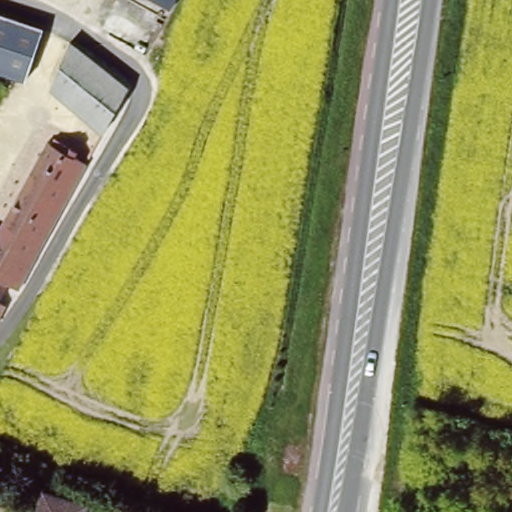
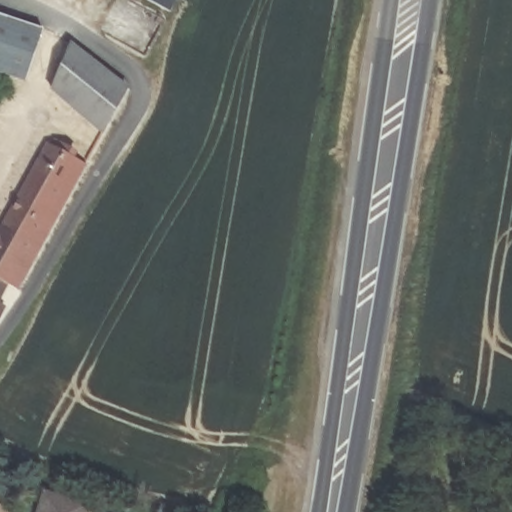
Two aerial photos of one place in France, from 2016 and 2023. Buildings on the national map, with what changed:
unchanged [(149,0),(178,0),(171,13),(149,0)]
unchanged [(30,81),(0,70),(0,12),(48,31),(30,81)]
unchanged [(164,18),(172,22),(168,28),(160,24),(164,18)]
unchanged [(65,41),(123,86),(100,130),(46,84),(65,41)]
unchanged [(87,164),(20,288),(9,282),(0,277),(0,229),(49,142),(87,164)]
unchanged [(0,299),(7,303),(0,317),(0,277),(9,282),(0,299)]
unchanged [(47,491),(88,504),(85,512),(40,512),(47,491)]

